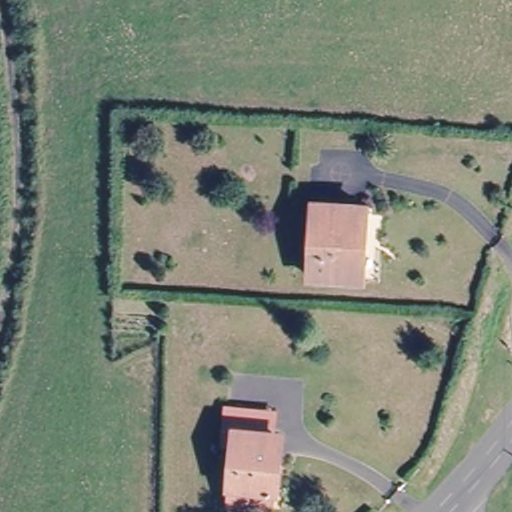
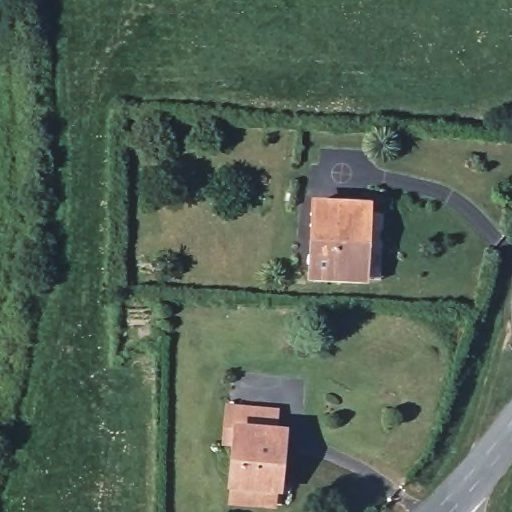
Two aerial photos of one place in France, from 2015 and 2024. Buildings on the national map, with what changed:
unchanged [(370,282),(360,282),(308,281),(311,203),(365,206),(374,207),(370,282)]
unchanged [(232,512),(235,456),(221,455),(224,438),(224,418),(273,422),(271,442),(283,443),(278,512),(232,512)]

